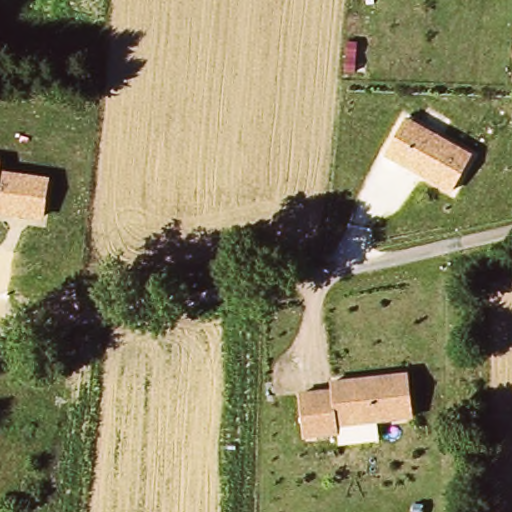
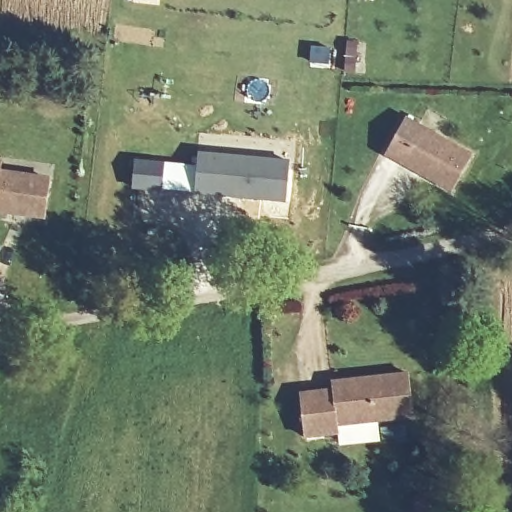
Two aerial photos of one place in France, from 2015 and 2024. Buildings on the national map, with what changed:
unchanged [(385,157),(404,120),(470,156),(451,193),(385,157)]
new [(199,151),(290,157),(288,197),(196,191),(199,151)]
new [(135,161),(165,163),(164,189),(134,186),(135,161)]
unchanged [(2,162),(1,172),(50,179),(44,226),(0,220),(0,162),(2,162)]
unchanged [(300,390),(331,385),(331,378),(409,370),(414,417),(338,425),(338,431),(305,436),(300,390)]

